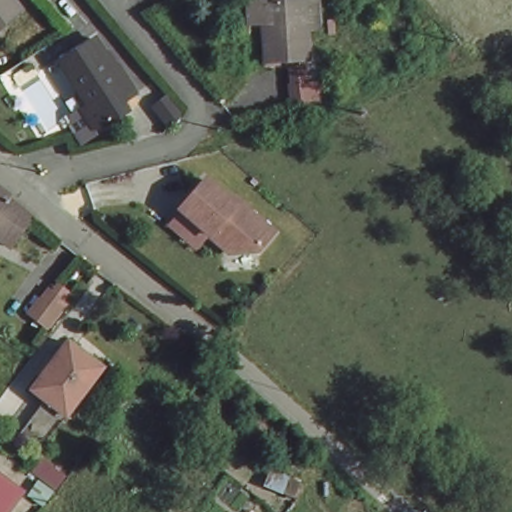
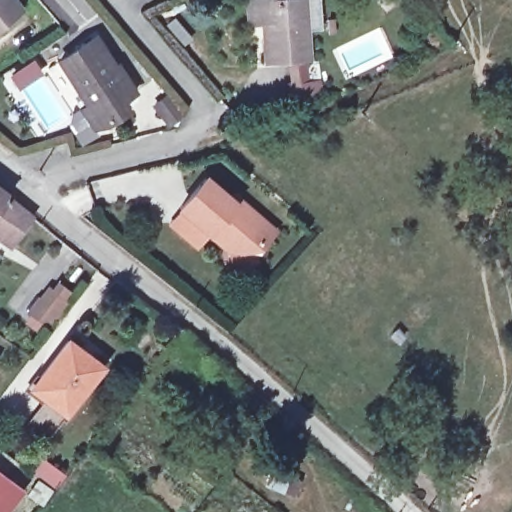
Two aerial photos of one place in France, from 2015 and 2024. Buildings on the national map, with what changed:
unchanged [(0,25),(0,0),(13,0),(20,9),(0,25)]
unchanged [(265,57),(261,0),(303,0),(306,57),(265,57)]
unchanged [(109,60),(112,57),(128,86),(116,94),(120,102),(88,122),(77,102),(85,96),(61,55),(94,35),(109,60)]
unchanged [(306,64),(308,97),(296,97),(294,62),(306,64)]
unchanged [(181,103),(168,112),(158,98),(170,88),(181,103)]
unchanged [(169,216),(180,202),(179,202),(203,170),(234,195),(237,191),(270,217),(261,227),(262,237),(259,240),(238,242),(213,222),(210,227),(209,226),(198,239),(169,216)]
unchanged [(10,247),(0,240),(0,190),(33,216),(10,247)]
unchanged [(58,297),(40,318),(27,307),(44,286),(58,297)]
unchanged [(105,364),(70,412),(53,397),(38,385),(73,339),(105,364)]
unchanged [(43,447),(25,434),(53,397),(70,412),(43,447)]
unchanged [(3,512),(0,512),(0,476),(20,491),(3,512)]

